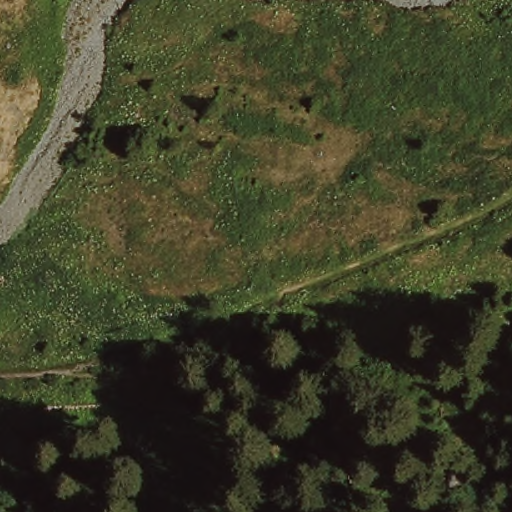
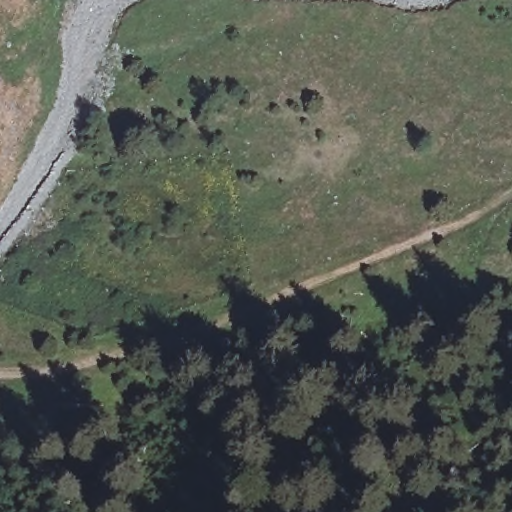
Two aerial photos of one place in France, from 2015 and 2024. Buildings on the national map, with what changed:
[]

